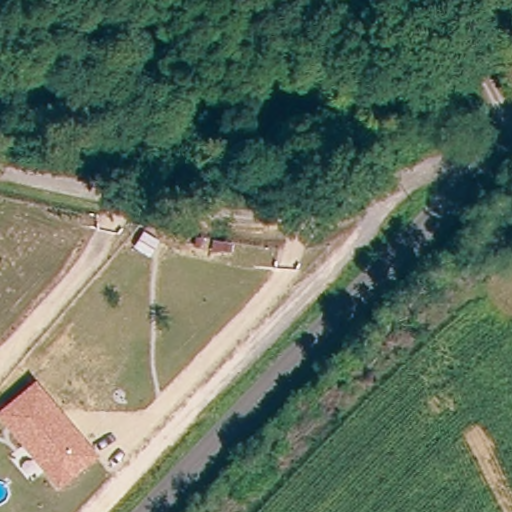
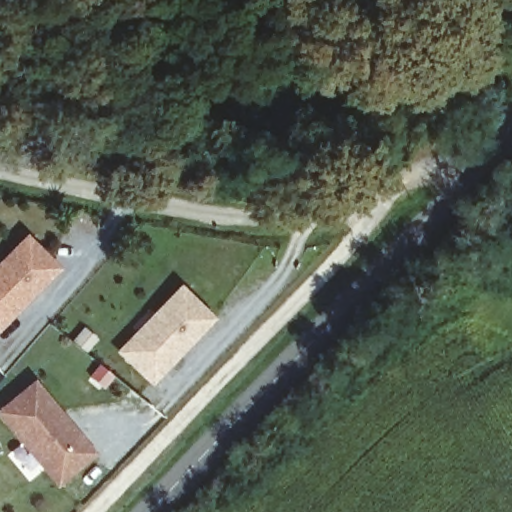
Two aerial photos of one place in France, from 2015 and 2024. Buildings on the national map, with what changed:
new [(0,260),(26,232),(62,268),(0,330),(0,260)]
new [(115,350),(180,283),(216,318),(152,383),(115,350)]
unchanged [(59,487),(0,416),(0,408),(33,378),(96,455),(59,487)]

